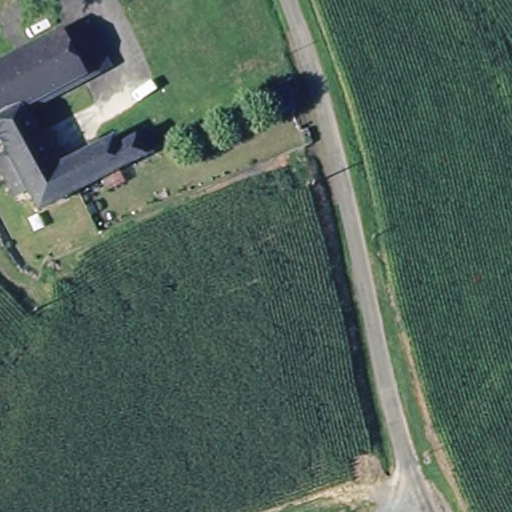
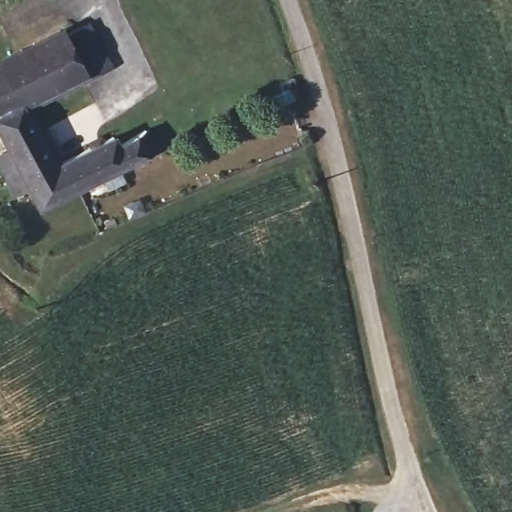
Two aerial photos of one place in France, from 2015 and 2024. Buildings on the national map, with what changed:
unchanged [(82,22),(102,59),(80,71),(61,34),(82,22)]
unchanged [(18,104),(54,170),(115,141),(121,151),(144,139),(155,156),(41,212),(27,188),(17,193),(0,162),(11,157),(0,138),(0,60),(57,28),(61,34),(80,71),(18,104)]

